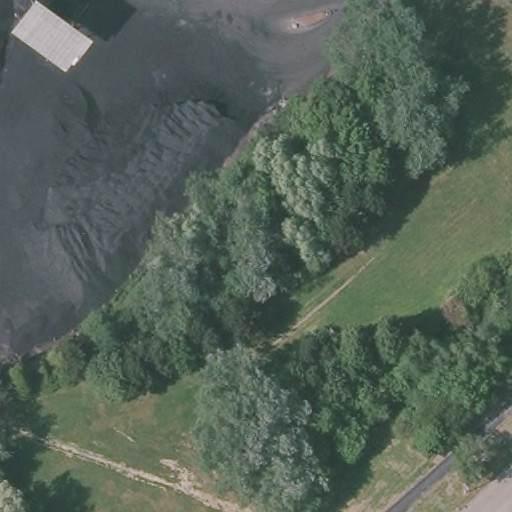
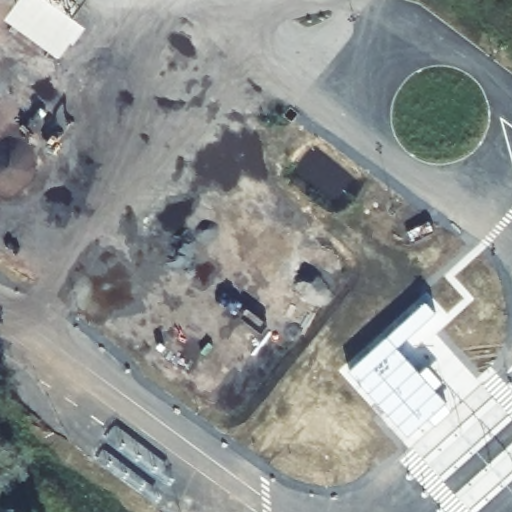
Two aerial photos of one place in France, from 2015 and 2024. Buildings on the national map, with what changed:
unchanged [(62,61),(0,19),(0,17),(12,0),(53,0),(87,23),(62,61)]
new [(437,312),(398,346),(421,372),(430,364),(444,381),(437,387),(456,409),(437,425),(431,416),(410,436),(350,369),(427,300),(437,312)]

